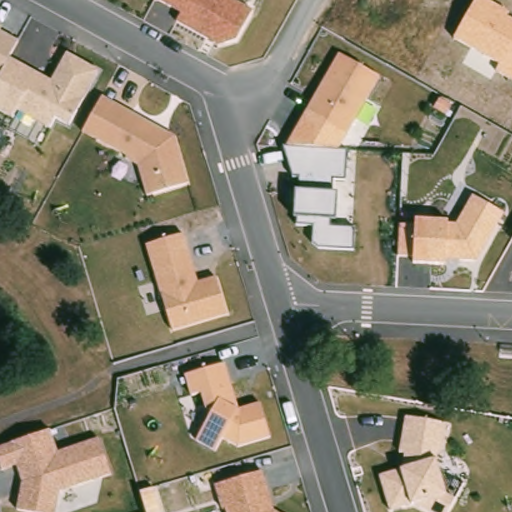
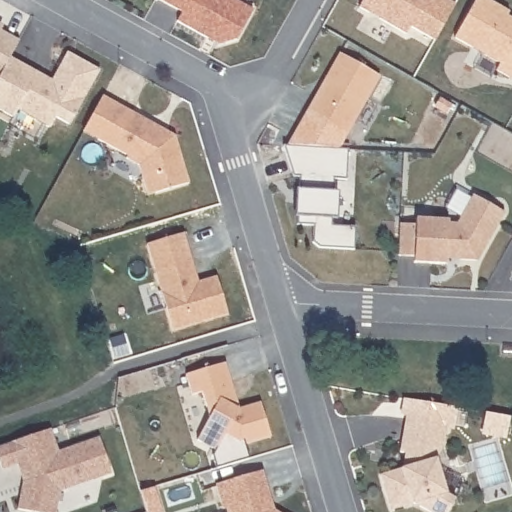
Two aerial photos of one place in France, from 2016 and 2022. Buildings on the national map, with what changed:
unchanged [(254,12),(237,41),(215,47),(174,23),(180,12),(158,0),(232,0),(254,12)]
new [(459,8),(438,45),(415,31),(410,39),(362,12),(369,0),(445,0),(459,8)]
unchanged [(499,63),(455,37),(475,0),(486,0),(509,14),(507,17),(512,20),(512,80),(495,70),(499,63)]
unchanged [(100,70),(70,127),(55,120),(50,130),(16,113),(12,120),(0,113),(0,25),(5,28),(3,32),(19,40),(9,58),(50,79),(65,52),(100,70)]
unchanged [(380,77),(345,136),(305,112),(338,53),(380,77)]
unchanged [(124,159),(125,155),(83,133),(103,97),(175,136),(188,184),(145,196),(137,166),(124,159)]
unchanged [(284,147),(305,112),(345,136),(334,150),(284,147)]
unchanged [(297,217),(293,216),(295,190),(298,190),(298,176),(292,176),(284,147),(346,151),(345,181),(333,180),(332,192),(339,194),(336,219),(330,219),(329,229),(354,230),(353,249),(316,247),(311,241),(313,226),(296,225),(297,217)]
unchanged [(447,224),(456,223),(472,196),(503,213),(476,262),(447,262),(446,266),(411,264),(415,218),(447,219),(447,224)]
unchanged [(185,233),(199,282),(216,277),(228,316),(170,332),(144,245),(185,233)]
unchanged [(512,236),(512,239),(510,239),(512,236)]
unchanged [(183,375),(224,364),(237,410),(260,403),(270,438),(239,448),(221,438),(215,451),(195,441),(206,422),(200,395),(189,399),(183,375)]
unchanged [(402,456),(396,454),(404,414),(448,424),(438,463),(445,493),(454,499),(448,512),(425,512),(410,505),(387,511),(376,474),(400,468),(402,456)]
unchanged [(1,470),(0,467),(0,447),(50,429),(57,451),(99,437),(111,475),(60,492),(55,512),(29,512),(16,510),(21,482),(15,466),(1,470)]
unchanged [(275,510),(279,512),(223,512),(215,483),(262,469),(275,510)]

